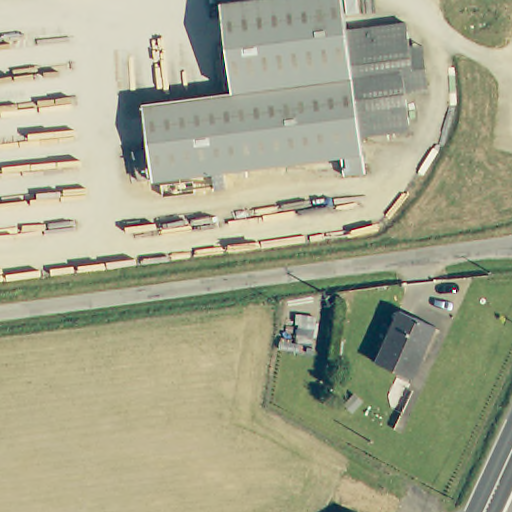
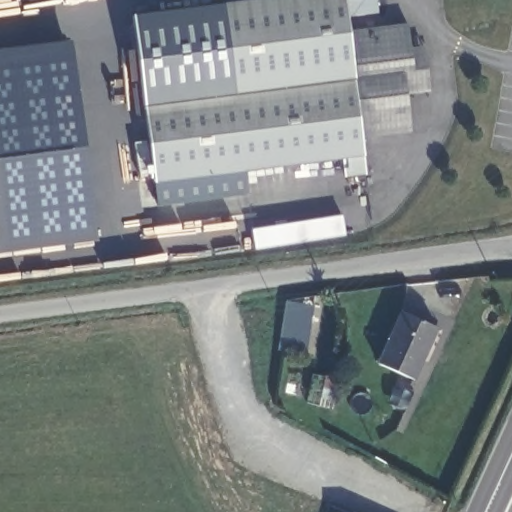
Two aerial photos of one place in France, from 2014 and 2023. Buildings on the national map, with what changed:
unchanged [(267,0),(348,0),(351,34),(411,27),(414,52),(426,50),(430,90),(408,93),(413,134),(363,140),(367,176),(347,178),(345,160),(156,181),(147,104),(237,94),(227,5),(267,0)]
new [(227,0),(267,0),(227,5),(227,0)]
new [(227,5),(237,94),(147,104),(131,14),(227,5)]
new [(0,252),(0,50),(71,42),(96,240),(0,252)]
new [(160,205),(156,181),(245,171),(249,195),(160,205)]
new [(313,305),(305,357),(276,352),(285,302),(313,305)]
unchanged [(440,330),(417,380),(383,364),(405,313),(440,330)]
unchanged [(357,512),(353,512),(354,511),(357,512)]

